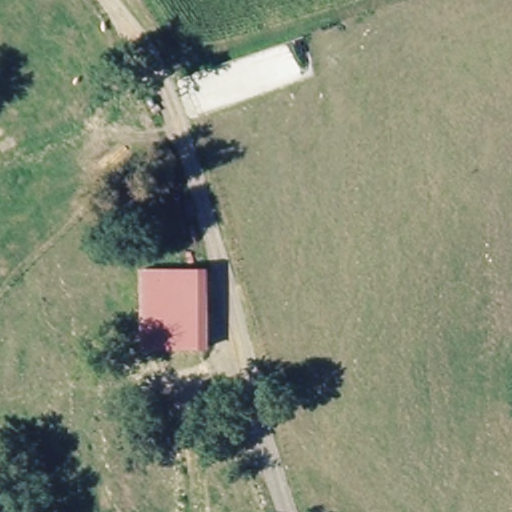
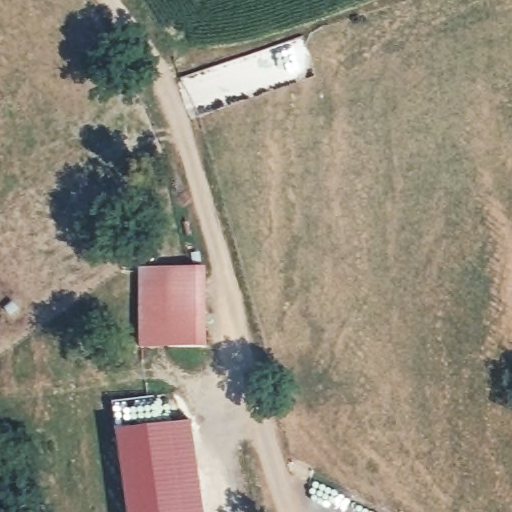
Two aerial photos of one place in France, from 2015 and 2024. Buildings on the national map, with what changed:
unchanged [(141,345),(141,266),(172,267),(171,345),(141,345)]
unchanged [(172,267),(206,267),(212,267),(212,298),(212,345),(171,345),(172,267)]
new [(204,512),(127,512),(116,430),(191,418),(204,512)]

